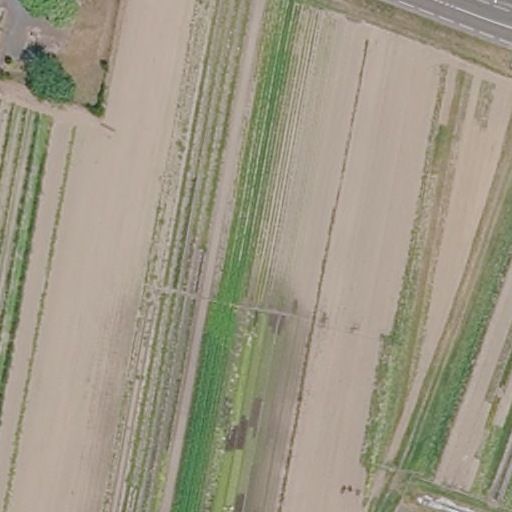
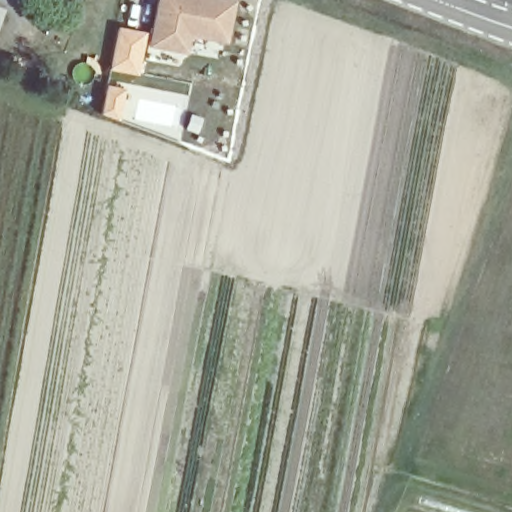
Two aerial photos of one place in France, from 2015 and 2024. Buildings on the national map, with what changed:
new [(146,32),(154,0),(232,0),(222,44),(188,36),(183,55),(142,46),(146,32)]
unchanged [(0,18),(0,9),(3,9),(0,18)]
new [(116,25),(146,32),(142,46),(135,75),(107,70),(116,25)]
new [(104,83),(121,87),(114,117),(98,113),(104,83)]

